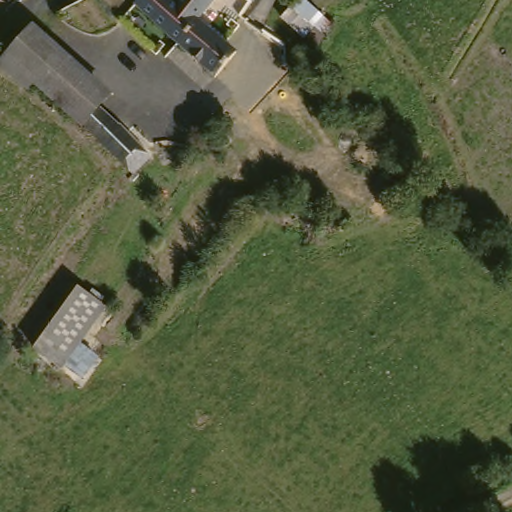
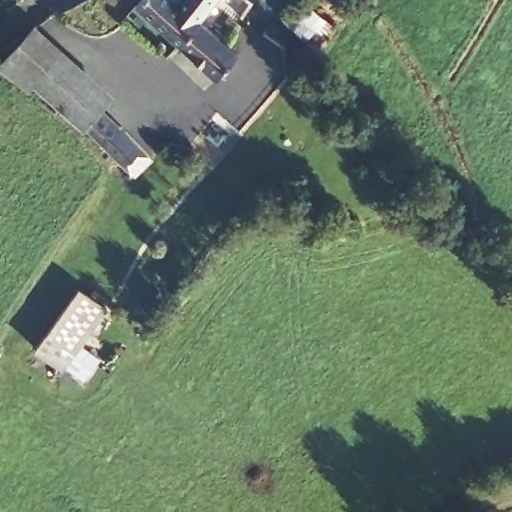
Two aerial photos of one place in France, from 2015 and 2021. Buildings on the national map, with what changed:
unchanged [(223,35),(240,50),(216,74),(170,31),(152,14),(139,28),(126,16),(140,2),(137,0),(138,0),(216,0),(201,14),(220,31),(223,35)]
unchanged [(308,45),(280,19),(297,0),(310,0),(335,20),(308,45)]
unchanged [(101,100),(97,105),(96,106),(79,124),(75,129),(31,85),(47,69),(21,45),(31,35),(101,100)]
unchanged [(47,69),(31,85),(22,95),(0,75),(0,66),(21,45),(47,69)]
unchanged [(129,172),(79,124),(96,106),(97,105),(125,131),(131,125),(149,141),(143,147),(147,152),(129,172)]
unchanged [(60,370),(33,351),(81,287),(117,312),(105,329),(97,323),(60,370)]

